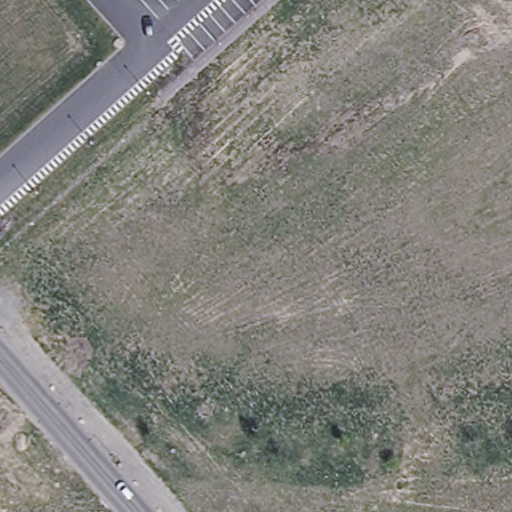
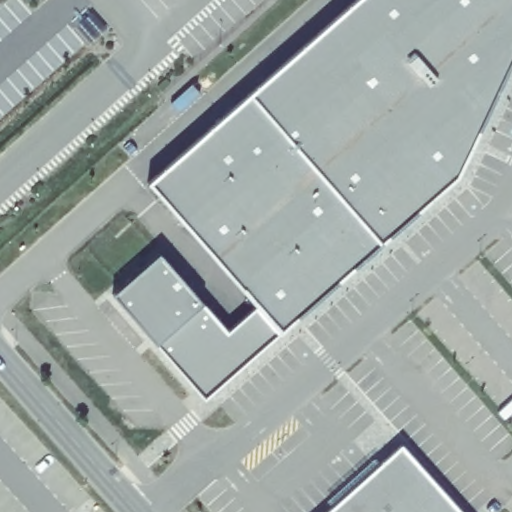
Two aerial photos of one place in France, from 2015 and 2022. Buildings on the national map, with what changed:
new [(280,333),(204,399),(112,295),(159,255),(227,332),(257,306),(148,184),(357,0),(512,0),(512,61),(457,177),(280,333)]
new [(63,512),(56,512),(13,460),(35,442),(84,496),(63,512)]
new [(460,512),(326,512),(400,445),(460,512)]

